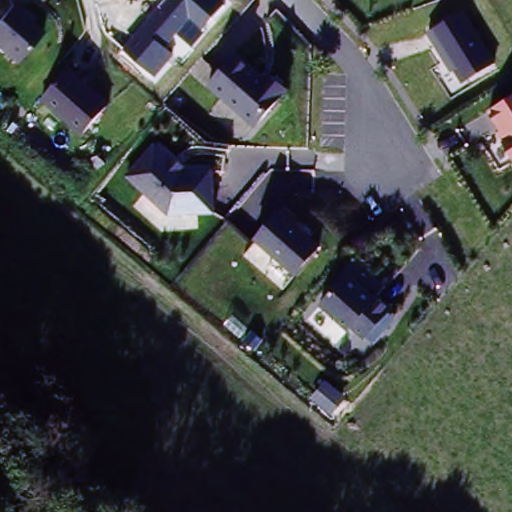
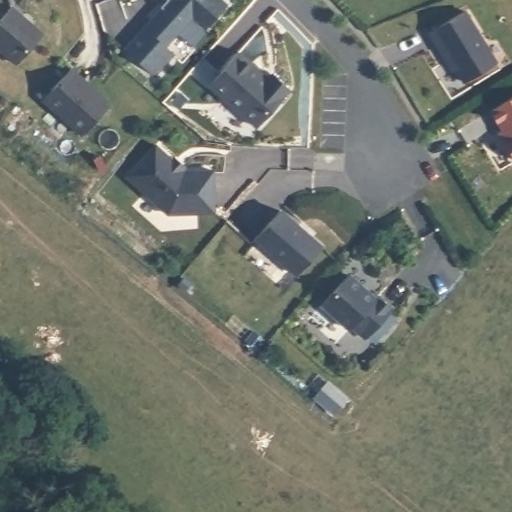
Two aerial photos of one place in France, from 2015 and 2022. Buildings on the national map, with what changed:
unchanged [(215,0),(206,14),(194,13),(149,64),(130,47),(170,0),(215,0)]
unchanged [(41,36),(15,66),(0,53),(0,22),(12,7),(41,36)]
unchanged [(460,7),(491,59),(462,76),(428,26),(460,7)]
unchanged [(236,48),(285,87),(255,119),(209,78),(236,48)]
unchanged [(111,106),(84,137),(45,101),(75,69),(111,106)]
unchanged [(512,149),(499,132),(506,127),(493,106),(512,94),(512,149)]
unchanged [(157,140),(186,167),(213,168),(212,207),(170,210),(130,173),(157,140)]
unchanged [(324,248),(298,279),(253,242),(280,211),(324,248)]
unchanged [(375,298),(378,295),(393,310),(365,343),(321,307),(349,274),(375,298)]

